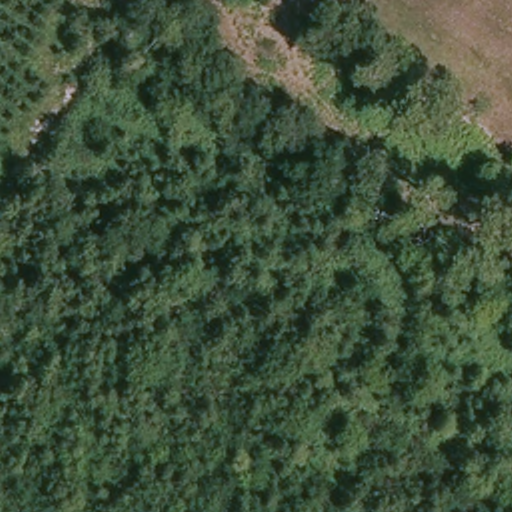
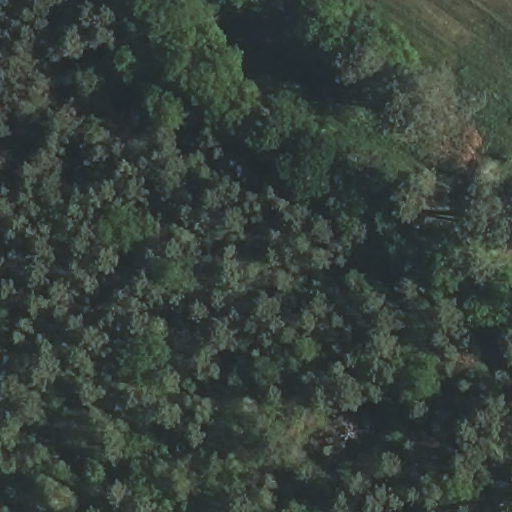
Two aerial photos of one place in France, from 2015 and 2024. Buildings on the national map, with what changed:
[]

